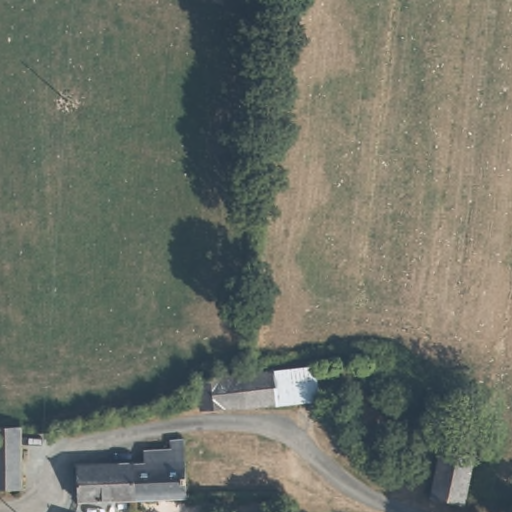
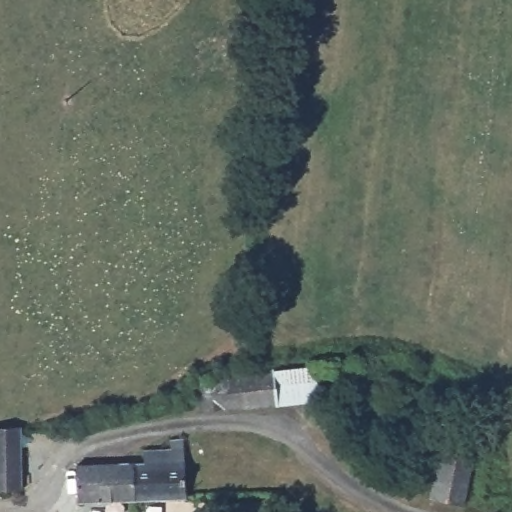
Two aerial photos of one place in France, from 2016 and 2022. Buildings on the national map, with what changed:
unchanged [(214,408),(202,408),(202,378),(221,378),(320,366),(324,397),(287,401),(214,408)]
unchanged [(22,426),(22,487),(0,487),(0,425),(22,426)]
unchanged [(170,439),(180,439),(180,498),(132,499),(131,463),(140,463),(141,447),(170,447),(170,439)]
unchanged [(463,504),(430,493),(440,449),(473,457),(463,504)]
unchanged [(131,463),(132,499),(77,501),(77,466),(131,463)]

